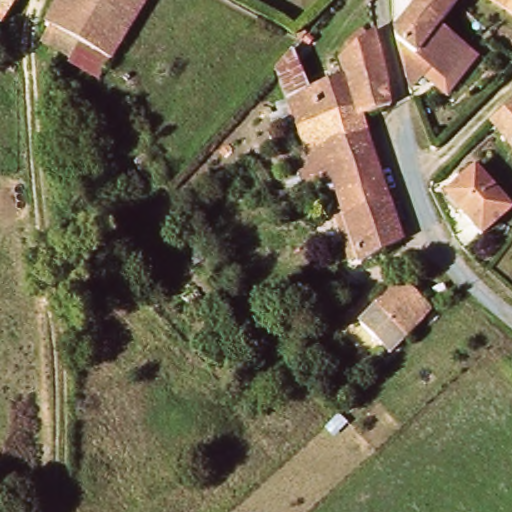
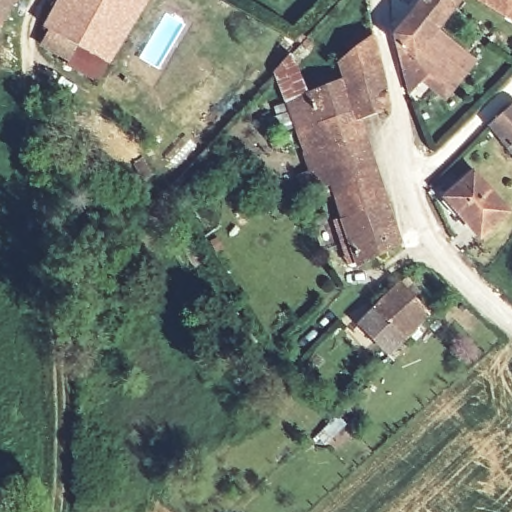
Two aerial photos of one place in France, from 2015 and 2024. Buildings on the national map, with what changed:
unchanged [(1,29),(0,29),(0,0),(20,0),(1,29)]
unchanged [(48,35),(44,32),(62,0),(154,0),(115,68),(79,48),(71,62),(42,47),(48,35)]
unchanged [(420,0),(461,0),(439,31),(469,53),(461,64),(448,82),(431,71),(409,99),(392,38),(411,11),(420,0)]
unchanged [(478,0),(512,0),(512,22),(478,0)]
unchanged [(392,111),(363,124),(360,116),(348,83),(341,65),(379,35),(392,111)]
unchanged [(295,58),(314,97),(348,83),(360,116),(303,134),(279,77),(295,58)]
unchanged [(508,114),(512,111),(512,154),(490,131),(508,114)]
unchanged [(312,152),(303,134),(360,116),(363,124),(368,138),(312,152)]
unchanged [(346,221),(340,205),(333,187),(313,194),(307,176),(320,171),(312,152),(368,138),(386,189),(392,205),(406,242),(365,267),(346,221)]
unchanged [(512,210),(512,211),(483,236),(449,198),(477,172),(512,210)]
unchanged [(389,358),(358,330),(399,289),(427,320),(389,358)]

